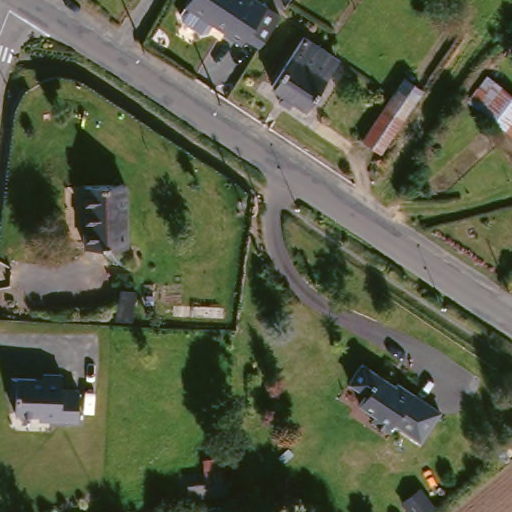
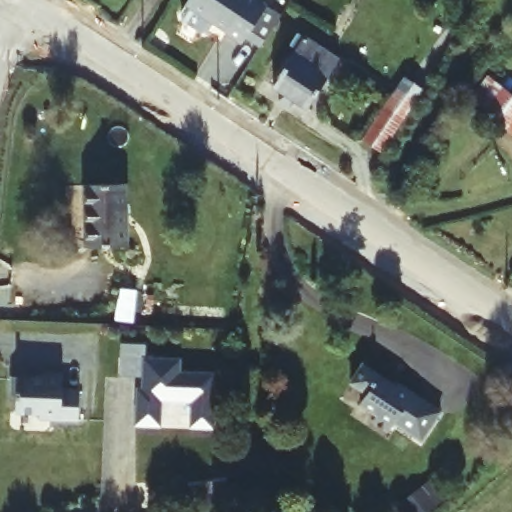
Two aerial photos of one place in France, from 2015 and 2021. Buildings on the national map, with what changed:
unchanged [(281,16),(279,19),(260,47),(246,38),(241,45),(226,34),(227,31),(214,22),(208,31),(202,32),(184,20),(182,14),(188,6),(186,5),(190,0),(257,0),(281,16)]
unchanged [(274,106),(280,98),(268,90),(301,42),(334,64),(301,113),(291,105),(285,114),(274,106)]
unchanged [(419,94),(376,158),(358,145),(401,82),(419,94)]
unchanged [(512,105),(512,143),(471,111),(489,87),(512,105)]
unchanged [(123,187),(126,243),(86,245),(83,187),(123,187)]
new [(122,347),(146,347),(145,361),(179,362),(179,375),(214,375),(213,428),(193,428),(194,405),(159,405),(159,427),(136,427),(137,392),(144,392),(144,380),(121,379),(122,347)]
unchanged [(394,388),(396,385),(439,414),(419,443),(393,425),(386,435),(371,424),(374,418),(358,407),(365,396),(348,385),(361,366),(394,388)]
unchanged [(44,378),(44,372),(61,372),(61,387),(79,388),(79,422),(41,421),(41,416),(18,414),(18,376),(44,378)]
unchanged [(425,512),(402,512),(396,505),(417,489),(431,506),(425,512)]

